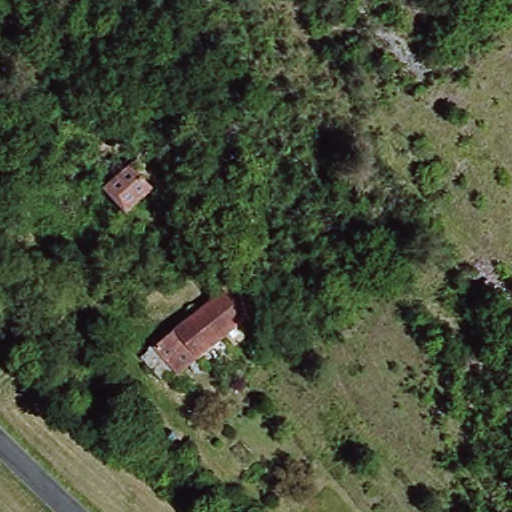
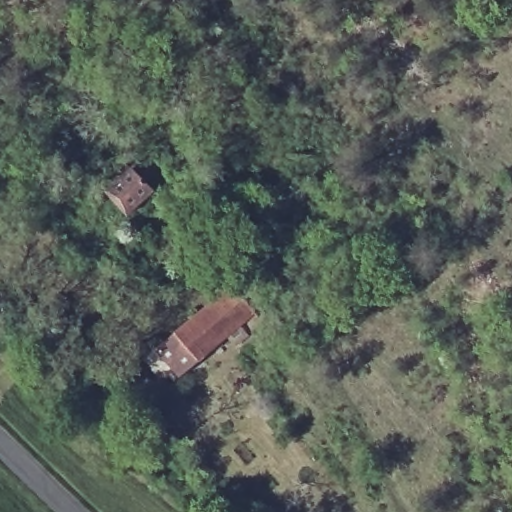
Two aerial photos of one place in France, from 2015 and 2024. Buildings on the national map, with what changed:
unchanged [(146,154),(167,177),(117,219),(97,195),(146,154)]
unchanged [(229,282),(252,311),(222,337),(192,364),(182,353),(172,362),(155,342),(229,282)]

